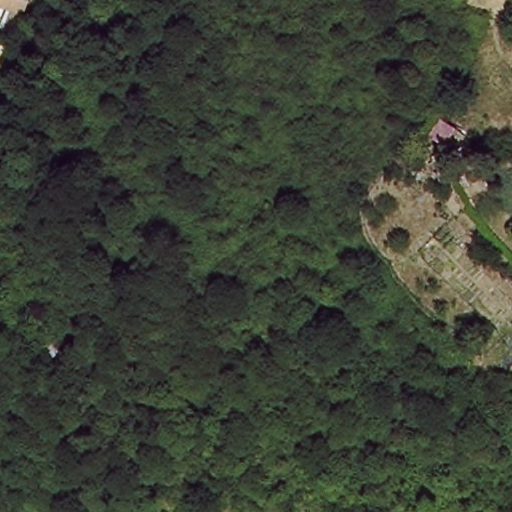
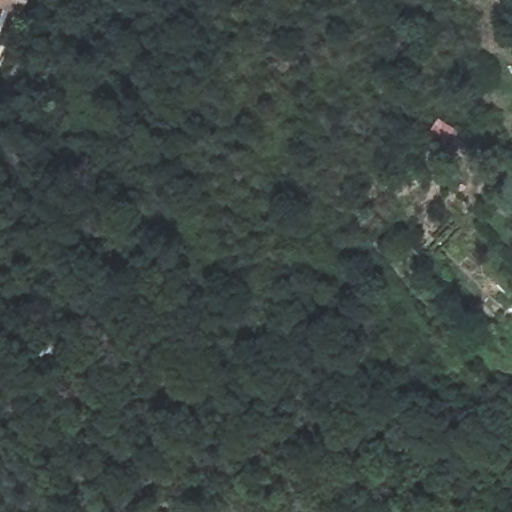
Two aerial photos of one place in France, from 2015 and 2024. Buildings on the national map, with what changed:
unchanged [(18,5),(5,0),(20,0),(18,5)]

